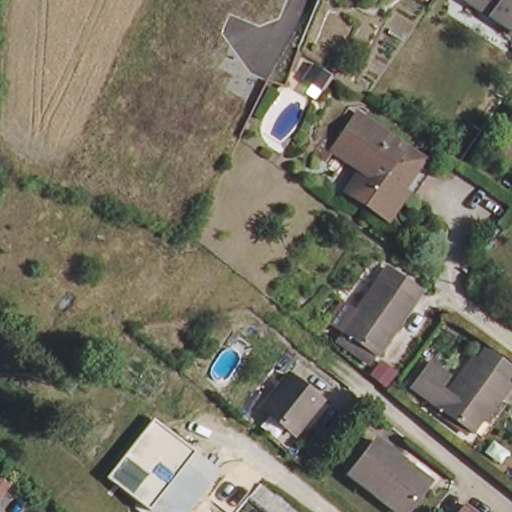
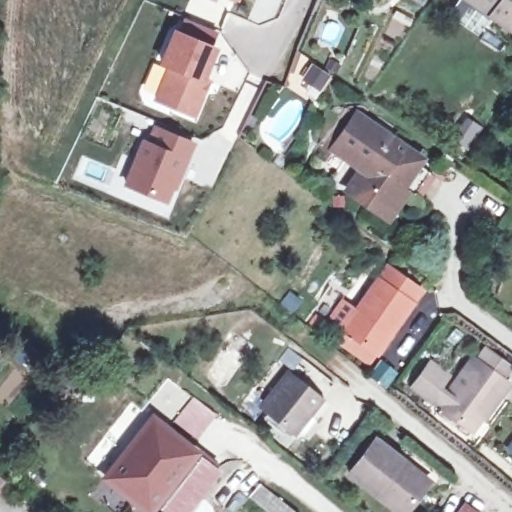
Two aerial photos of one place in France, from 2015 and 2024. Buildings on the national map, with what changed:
unchanged [(512,0),(512,28),(468,0),(512,0)]
new [(154,99),(166,66),(159,65),(174,30),(219,48),(205,80),(212,82),(195,117),(154,99)]
unchanged [(315,42),(332,54),(322,68),(306,56),(315,42)]
unchanged [(405,190),(389,215),(374,203),(369,210),(347,193),(365,169),(334,147),(360,110),(401,140),(397,149),(421,167),(405,190)]
new [(141,141),(146,144),(152,127),(190,143),(175,176),(172,175),(162,200),(123,185),(141,141)]
unchanged [(342,339),(349,330),(394,268),(427,295),(384,355),(377,365),(342,339)]
unchanged [(449,390),(472,358),(510,386),(496,409),(492,406),(471,430),(410,383),(428,358),(447,372),(439,382),(449,390)]
unchanged [(323,405),(294,440),(260,413),(289,376),(323,405)]
unchanged [(192,452),(217,470),(186,512),(148,512),(147,510),(107,479),(152,419),(192,452)]
unchanged [(354,478),(381,442),(407,463),(434,486),(429,493),(413,512),(397,512),(354,478)]
unchanged [(264,485),(290,507),(296,512),(270,512),(254,499),(264,485)]
unchanged [(464,503),(475,512),(458,512),(464,503)]

